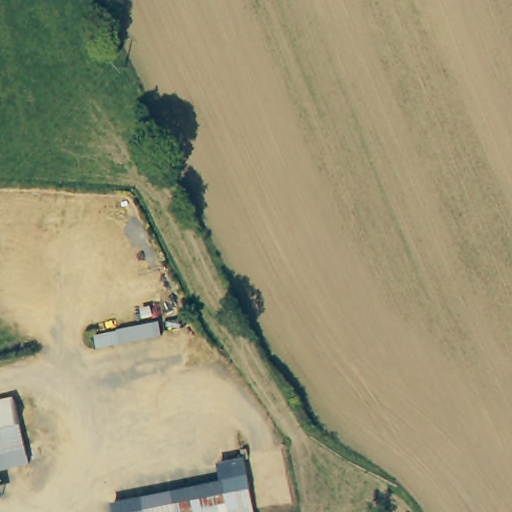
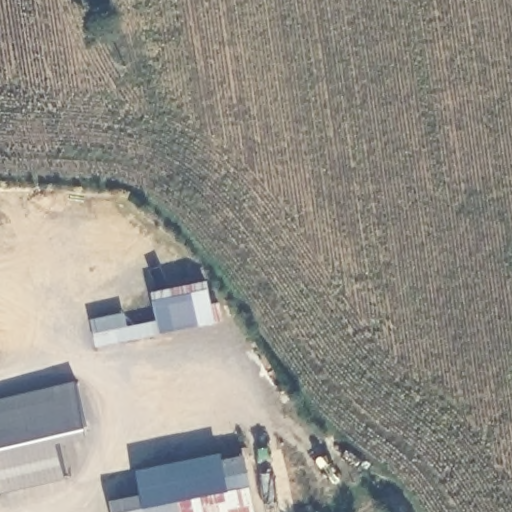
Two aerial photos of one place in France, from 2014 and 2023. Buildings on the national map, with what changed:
new [(161,335),(97,348),(94,334),(158,321),(153,294),(208,282),(217,323),(161,335)]
new [(75,385),(87,437),(58,445),(67,480),(0,495),(0,480),(32,472),(14,398),(75,385)]
unchanged [(32,472),(0,480),(0,401),(14,398),(32,472)]
unchanged [(185,512),(113,512),(111,503),(152,494),(149,467),(245,458),(249,482),(181,496),(185,512)]
unchanged [(185,512),(181,496),(249,482),(256,512),(185,512)]

